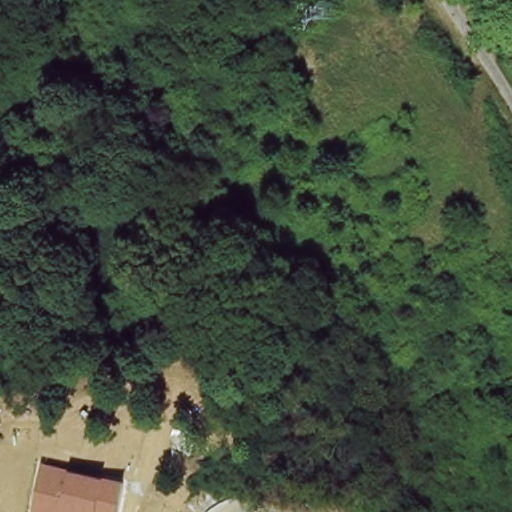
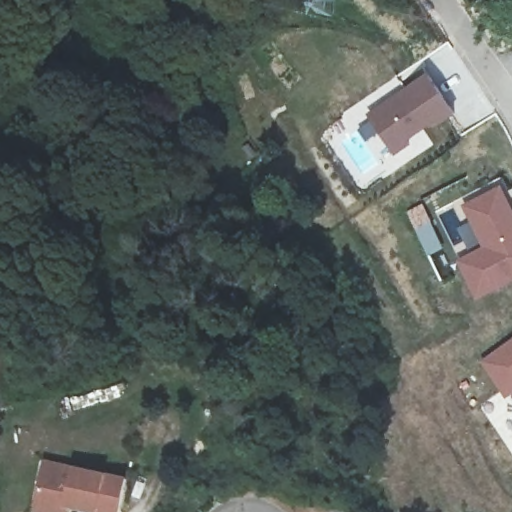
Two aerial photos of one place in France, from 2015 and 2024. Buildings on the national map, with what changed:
new [(429,74),(458,116),(439,129),(435,124),(410,142),(412,146),(395,157),(367,116),(429,74)]
new [(462,204),(504,182),(512,200),(512,283),(477,302),(457,259),(482,247),(462,204)]
new [(423,202),(445,248),(427,257),(405,211),(423,202)]
new [(512,396),(509,398),(482,362),(512,341),(512,396)]
unchanged [(86,512),(70,508),(69,512),(34,512),(45,462),(128,480),(121,512),(86,512)]

